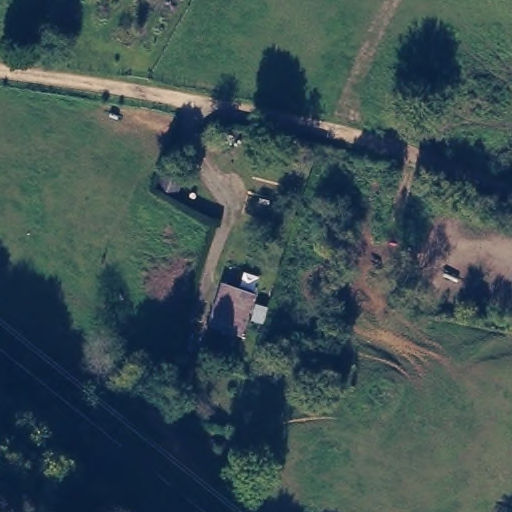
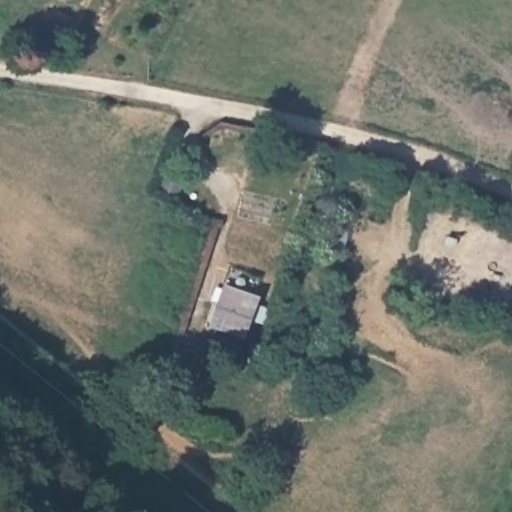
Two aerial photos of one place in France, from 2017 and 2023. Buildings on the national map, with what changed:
unchanged [(242,331),(206,319),(223,278),(259,291),(242,331)]

